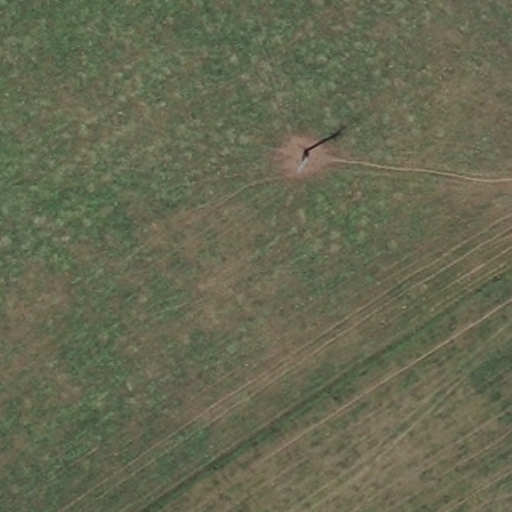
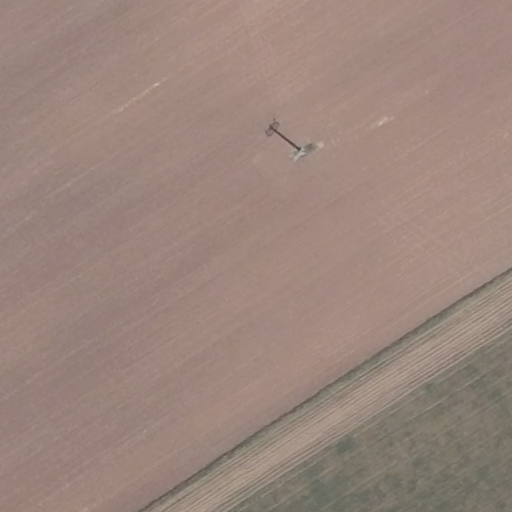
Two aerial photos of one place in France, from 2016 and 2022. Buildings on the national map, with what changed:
[]

